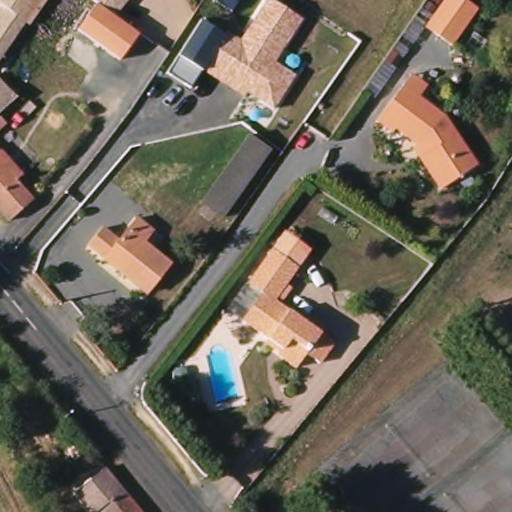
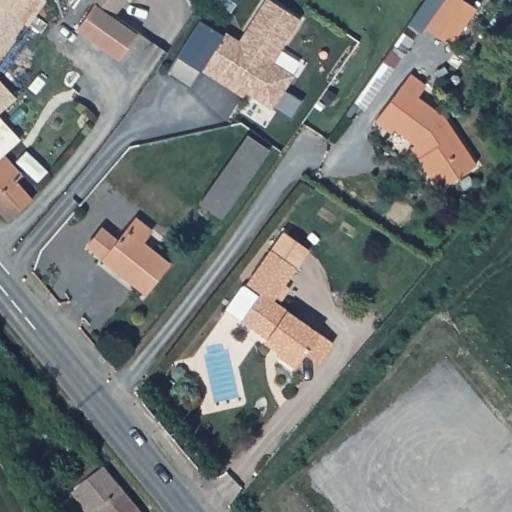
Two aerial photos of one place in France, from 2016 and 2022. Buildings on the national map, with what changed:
unchanged [(46,0),(29,25),(0,68),(0,0),(46,0)]
unchanged [(99,0),(127,0),(117,12),(99,0)]
unchanged [(240,96),(203,72),(227,35),(238,41),(264,0),(271,0),(302,19),(274,65),(295,76),(274,110),(245,91),(240,96)]
unchanged [(232,0),(242,6),(231,24),(213,13),(221,0),(232,0)]
unchanged [(455,47),(428,29),(449,0),(466,0),(481,10),(455,47)]
unchanged [(77,30),(96,2),(142,34),(120,60),(77,30)]
unchanged [(205,17),(228,32),(195,85),(171,70),(205,17)]
unchanged [(420,145),(399,130),(396,134),(380,122),(406,86),(414,76),(429,87),(421,97),(449,118),(481,166),(444,190),(423,159),(416,148),(420,145)]
unchanged [(0,120),(0,77),(21,100),(2,117),(2,118),(0,120)]
unchanged [(10,126),(0,135),(0,120),(2,118),(10,126)]
unchanged [(227,220),(205,205),(252,137),(274,152),(227,220)]
unchanged [(4,154),(5,153),(27,177),(21,183),(38,201),(14,223),(0,207),(0,150),(4,154)]
unchanged [(150,290),(108,257),(109,256),(93,243),(106,226),(122,239),(140,216),(156,229),(147,240),(174,261),(151,290),(150,290)]
unchanged [(247,281),(285,230),(313,251),(301,269),(276,251),(257,277),(252,285),(247,281)]
unchanged [(272,340),(246,321),(265,294),(252,285),(276,251),(301,269),(278,301),(338,344),(324,364),(310,355),(300,369),(282,356),(268,346),(272,340)]
unchanged [(146,512),(92,512),(79,495),(110,469),(128,490),(146,512)]

